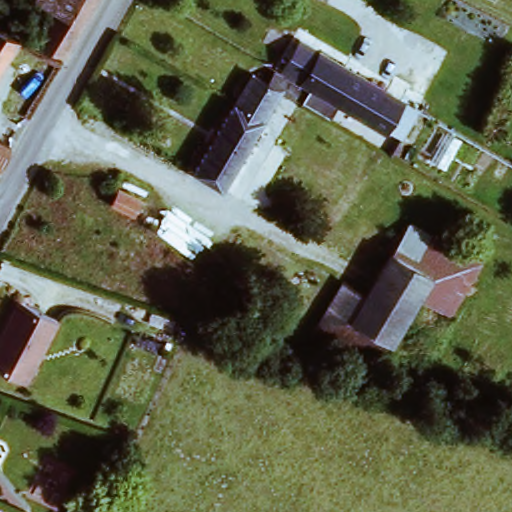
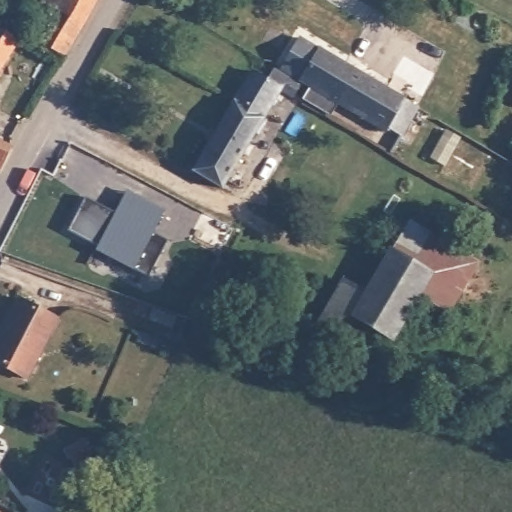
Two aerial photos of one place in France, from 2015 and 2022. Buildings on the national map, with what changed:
unchanged [(43,39),(64,0),(98,0),(70,53),(43,39)]
unchanged [(0,66),(0,26),(20,36),(0,66)]
unchanged [(300,42),(422,104),(412,125),(392,116),(386,128),(282,75),(300,42)]
unchanged [(295,92),(285,111),(267,101),(217,193),(188,178),(238,83),(260,94),(269,78),(295,92)]
unchanged [(0,167),(0,143),(13,149),(3,169),(0,167)]
new [(167,211),(155,234),(168,242),(150,278),(97,251),(100,247),(69,230),(87,198),(116,213),(128,192),(167,211)]
unchanged [(320,315),(345,270),(372,286),(408,221),(440,239),(412,293),(382,345),(363,336),(348,328),(341,341),(313,326),(320,315)]
unchanged [(412,293),(440,239),(481,261),(452,315),(412,293)]
unchanged [(0,345),(23,297),(59,314),(32,370),(0,354),(0,345)]

